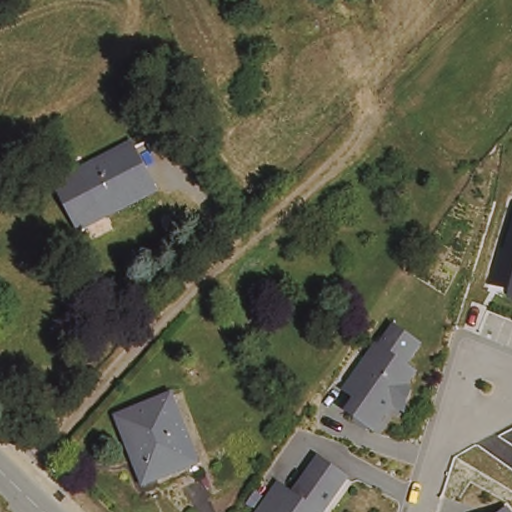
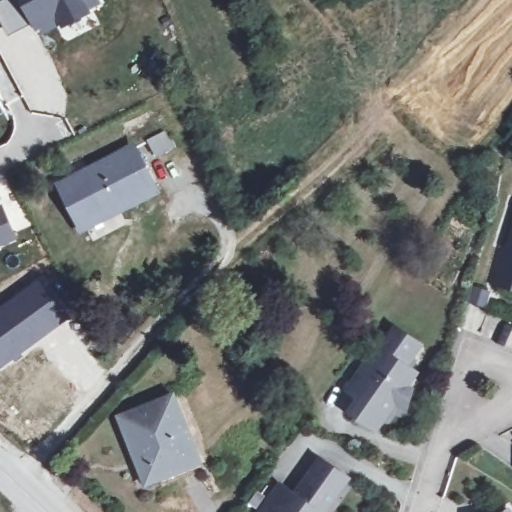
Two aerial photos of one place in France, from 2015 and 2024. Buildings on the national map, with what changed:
new [(0,0),(103,0),(105,3),(76,20),(39,37),(31,25),(8,36),(0,21),(0,0)]
new [(0,114),(0,103),(4,112),(0,114)]
new [(162,132),(169,145),(154,152),(147,139),(162,132)]
unchanged [(85,228),(66,186),(140,154),(157,192),(85,228)]
new [(17,239),(0,246),(0,203),(2,203),(17,239)]
unchanged [(490,285),(502,248),(505,249),(512,224),(512,291),(490,285)]
new [(73,316),(20,356),(0,370),(0,305),(44,274),(73,316)]
unchanged [(350,390),(380,346),(385,349),(399,329),(417,341),(423,346),(415,356),(409,366),(419,373),(410,387),(414,390),(415,391),(409,411),(407,410),(398,403),(379,430),(357,415),(367,402),(350,390)]
unchanged [(147,483),(119,417),(172,395),(198,461),(147,483)]
unchanged [(299,492),(315,470),(324,455),(350,474),(341,488),(329,506),(324,504),(321,508),(327,512),(263,512),(284,482),(299,492)]
unchanged [(508,512),(512,509),(512,512),(508,512)]

